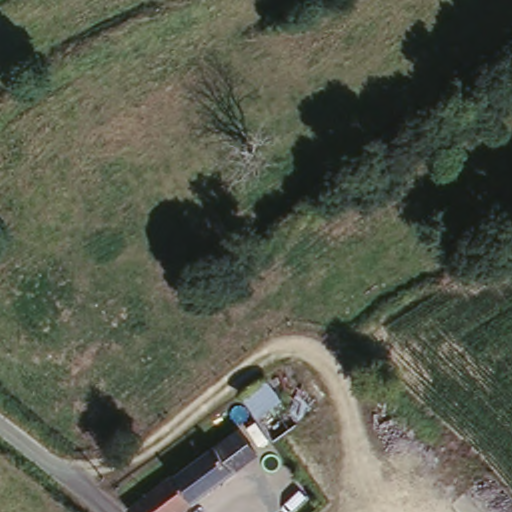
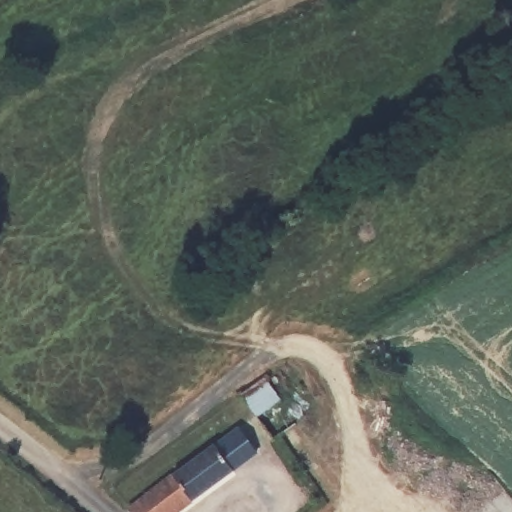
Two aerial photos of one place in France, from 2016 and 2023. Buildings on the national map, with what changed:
unchanged [(261,371),(296,416),(257,446),(238,421),(255,407),(239,388),(261,371)]
unchanged [(238,421),(257,446),(171,512),(134,512),(128,505),(203,447),(238,421)]

